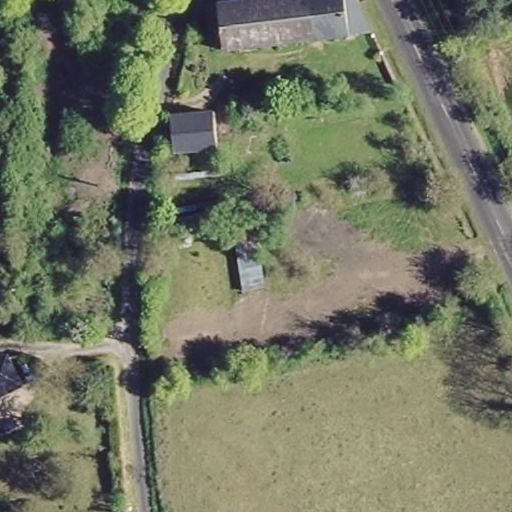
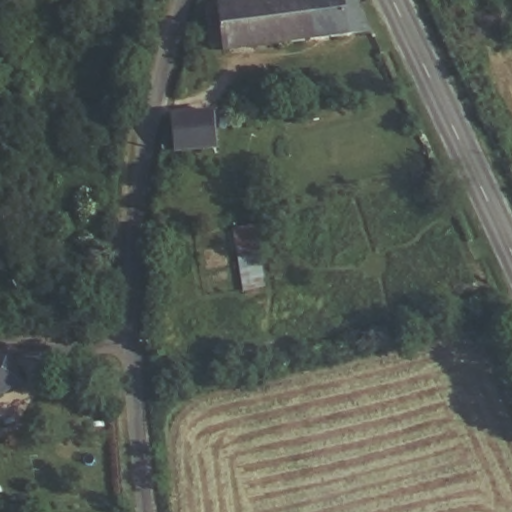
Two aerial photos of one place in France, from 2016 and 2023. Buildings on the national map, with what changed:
unchanged [(282,0),(287,41),(220,50),(220,45),(208,46),(202,3),(224,0),(282,0)]
unchanged [(287,41),(282,0),(352,0),(367,30),(287,41)]
unchanged [(220,109),(222,132),(211,134),(211,146),(169,149),(166,115),(220,109)]
unchanged [(0,397),(0,354),(27,352),(34,371),(24,376),(27,384),(0,397)]

